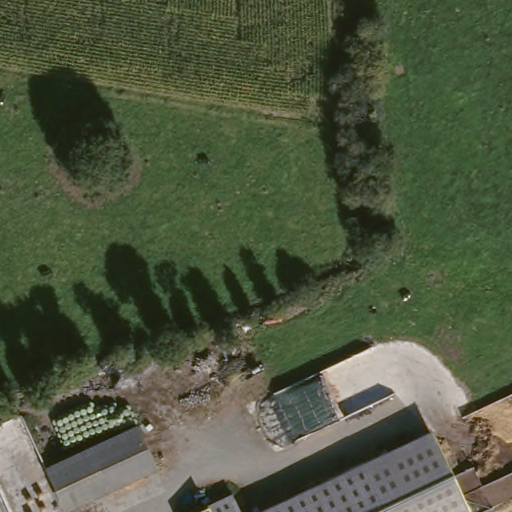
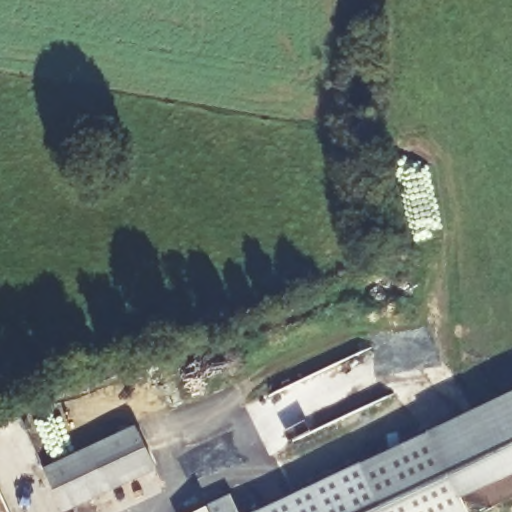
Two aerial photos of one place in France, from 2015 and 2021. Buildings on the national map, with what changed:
new [(512,478),(466,500),(433,432),(512,394),(512,478)]
unchanged [(45,471),(137,428),(153,465),(63,508),(45,471)]
unchanged [(471,512),(385,512),(366,467),(433,432),(471,512)]
unchanged [(266,512),(366,467),(385,512),(266,512)]
unchanged [(242,512),(203,512),(238,497),(242,512)]

